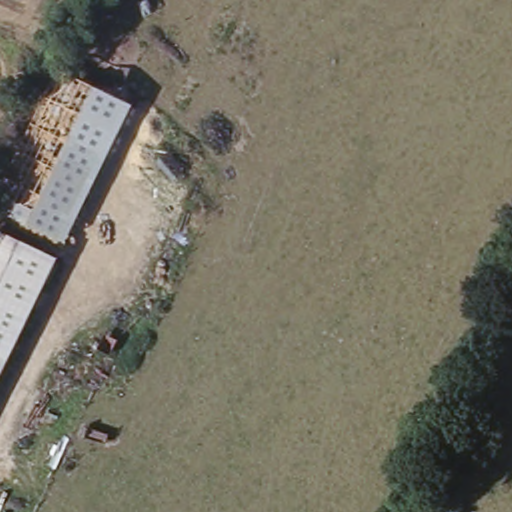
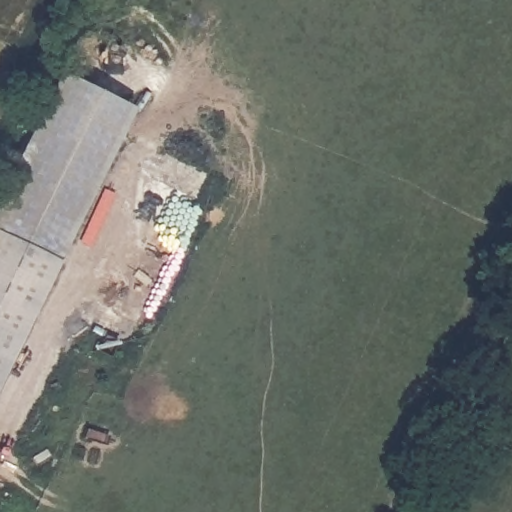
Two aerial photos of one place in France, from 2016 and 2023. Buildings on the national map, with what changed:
unchanged [(0,210),(0,180),(55,67),(132,104),(66,242),(0,210)]
unchanged [(0,378),(0,233),(59,260),(0,378)]

